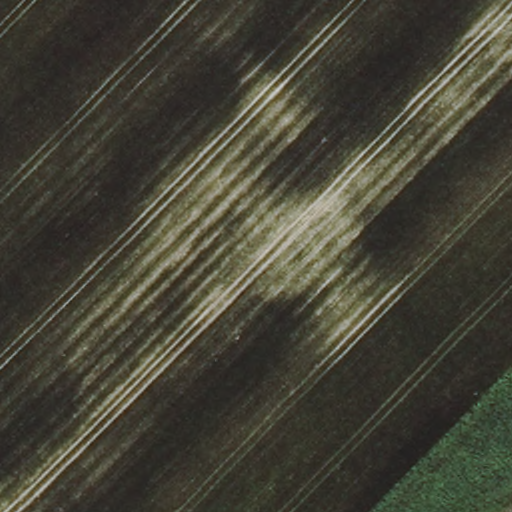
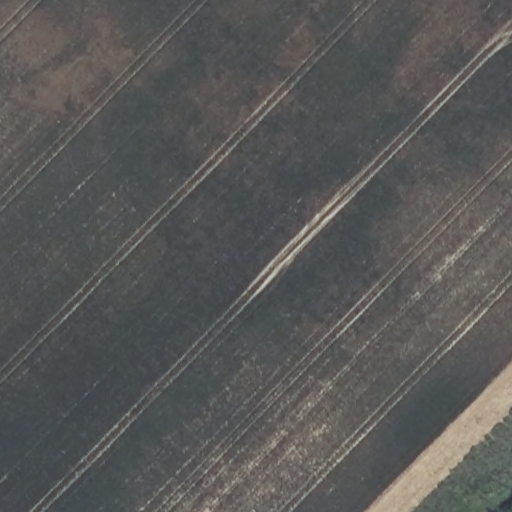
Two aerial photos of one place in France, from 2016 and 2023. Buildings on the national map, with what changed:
[]

